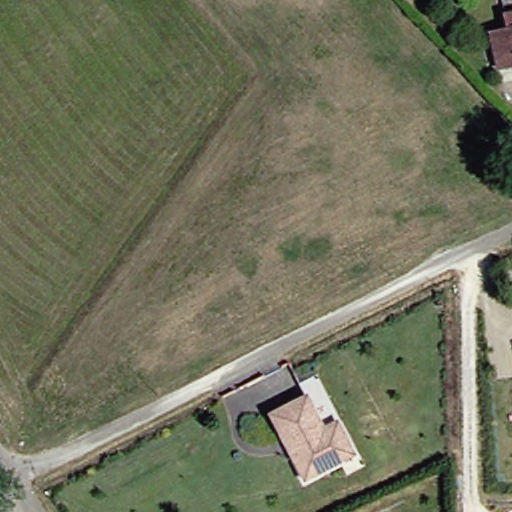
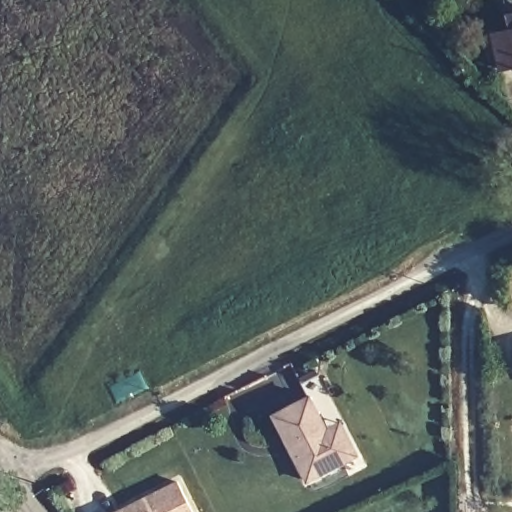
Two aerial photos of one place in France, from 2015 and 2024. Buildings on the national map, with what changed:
unchanged [(506,68),(500,34),(512,32),(512,67),(506,68)]
new [(512,269),(512,288),(510,269),(512,269)]
unchanged [(273,414),(310,398),(304,384),(322,376),(332,400),(315,407),(324,428),(341,420),(350,439),(358,459),(305,482),(290,451),(285,441),(273,414)]
new [(175,484),(190,512),(119,512),(135,504),(144,500),(175,484)]

